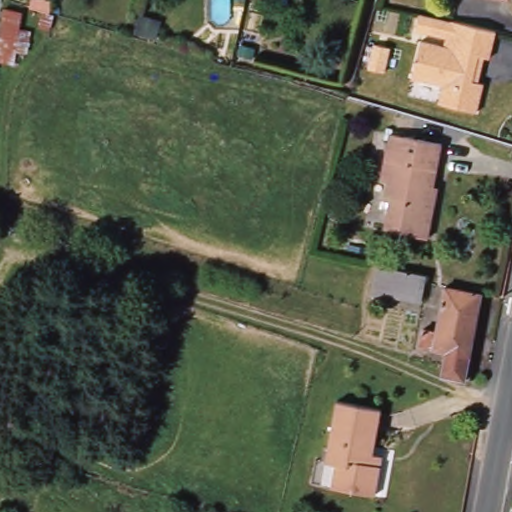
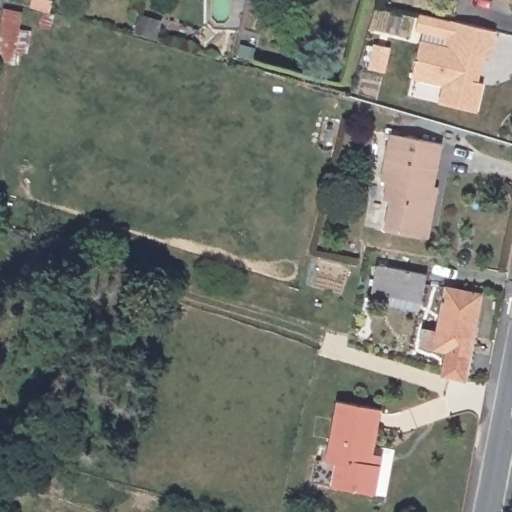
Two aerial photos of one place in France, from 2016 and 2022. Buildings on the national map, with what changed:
unchanged [(50,0),(53,1),(51,11),(31,6),(32,0),(50,0)]
unchanged [(23,14),(14,63),(0,60),(0,36),(4,10),(23,14)]
unchanged [(489,84),(482,112),(444,103),(448,86),(417,79),(427,40),(450,46),(456,21),(482,27),(502,32),(495,59),(490,58),(484,83),(489,84)]
unchanged [(437,194),(429,234),(384,225),(390,196),(384,195),(388,177),(382,176),(390,129),(443,139),(435,181),(439,182),(437,194)]
unchanged [(377,266),(426,275),(421,302),(371,293),(377,266)]
unchanged [(424,323),(438,326),(446,281),(483,288),(465,377),(458,375),(452,374),(450,373),(442,372),(447,347),(420,341),(424,323)]
unchanged [(382,465),(377,495),(332,487),(336,464),(326,462),(337,401),(382,409),(373,454),(383,455),(382,465)]

